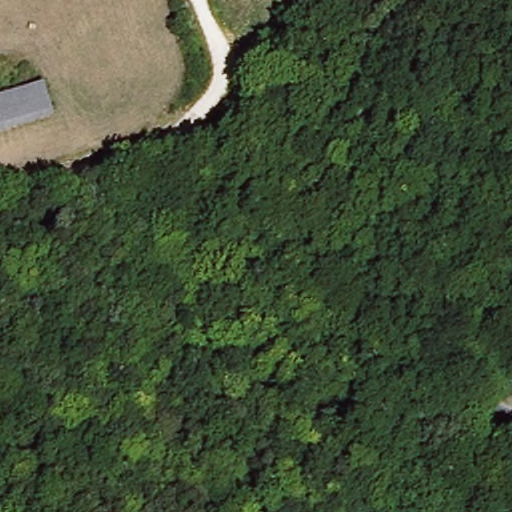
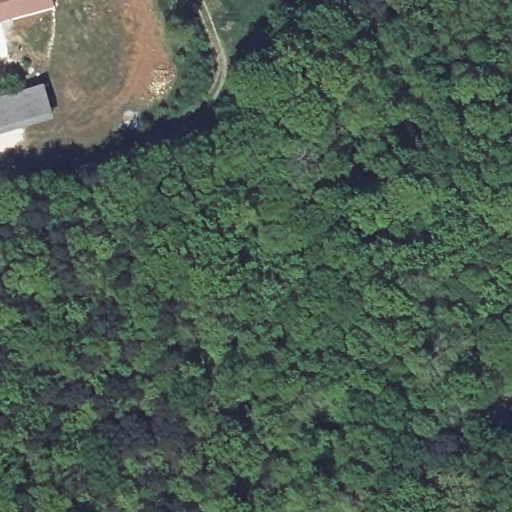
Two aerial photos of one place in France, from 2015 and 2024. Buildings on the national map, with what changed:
new [(55,8),(0,22),(0,0),(53,0),(55,8)]
unchanged [(0,129),(0,97),(50,79),(60,107),(0,129)]

